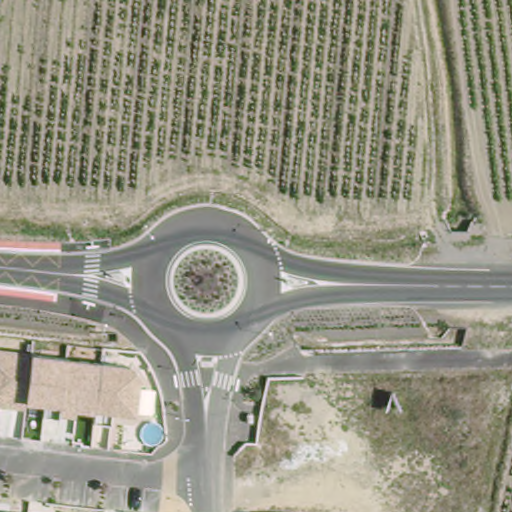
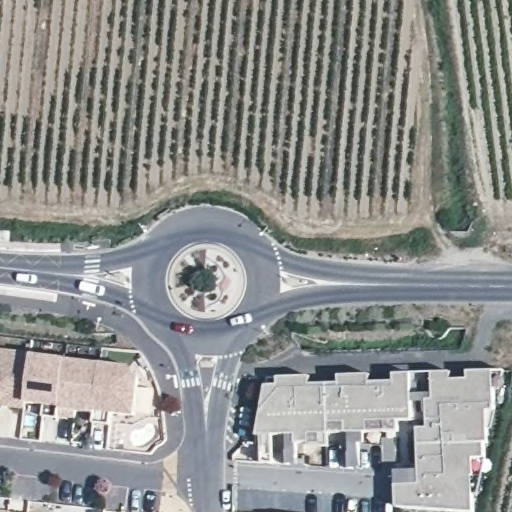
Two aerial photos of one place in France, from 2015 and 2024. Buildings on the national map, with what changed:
unchanged [(31,352),(131,365),(141,376),(136,418),(113,415),(112,424),(94,422),(94,413),(77,411),(75,420),(43,417),(44,405),(27,403),(25,409),(0,407),(0,349),(31,352)]
new [(425,464),(424,423),(434,423),(433,415),(418,415),(404,416),(405,426),(390,427),(374,427),(370,427),(370,437),(365,438),(366,463),(357,463),(357,448),(363,448),(362,438),(357,438),(357,428),(353,428),(337,429),(337,442),(317,442),(317,437),(304,438),(304,442),(304,460),(289,460),(289,447),(294,447),(294,442),(293,442),(292,430),(278,430),(263,431),(267,402),(271,381),(284,380),(284,373),(316,372),(316,379),(345,378),(345,371),(376,369),(376,377),(400,376),(400,369),(417,368),(431,368),(431,389),(439,389),(439,367),(498,365),(510,365),(506,384),(501,384),(501,405),(498,423),(495,423),(494,437),(491,437),(491,452),(488,470),(483,489),(479,489),(479,507),(402,502),(402,480),(401,465),(425,464)]

